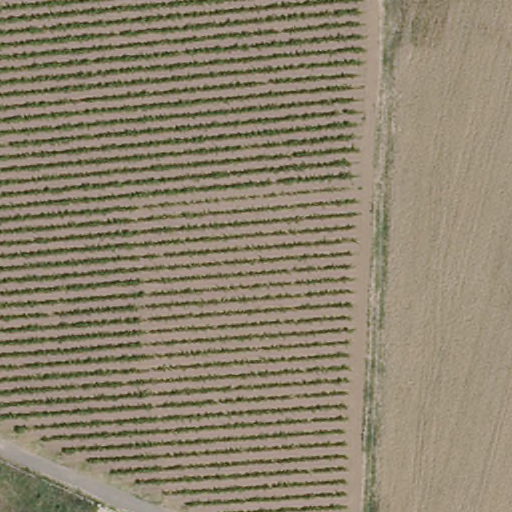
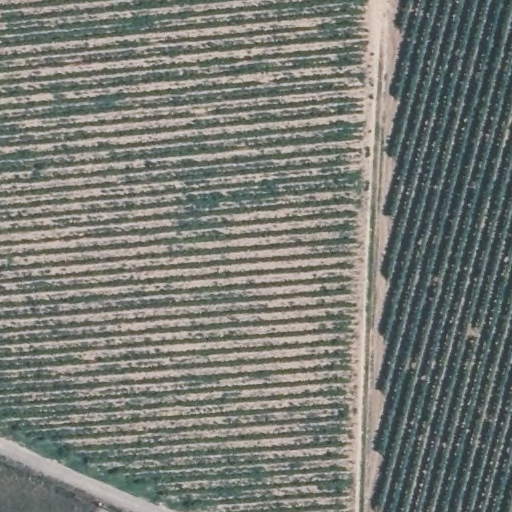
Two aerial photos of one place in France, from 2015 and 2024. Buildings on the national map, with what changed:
[]

